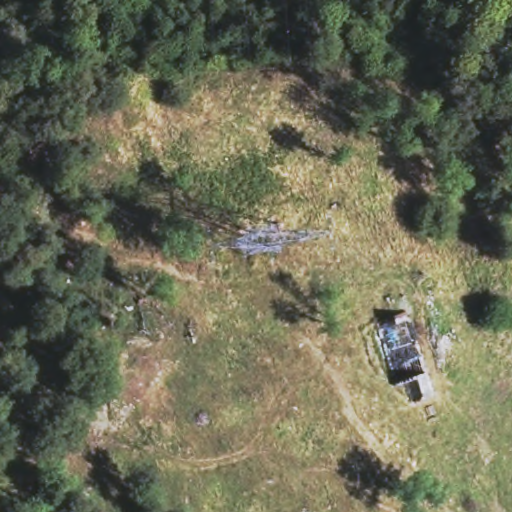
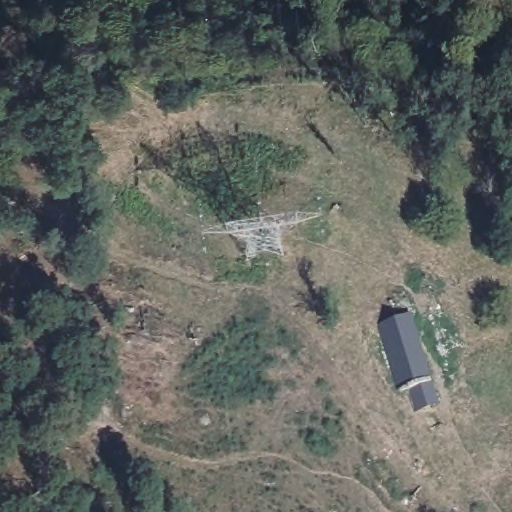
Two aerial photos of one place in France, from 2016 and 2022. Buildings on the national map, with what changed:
new [(416,396),(408,379),(400,382),(376,319),(411,308),(441,388),(416,396)]
demolished [(425,358),(429,379),(405,385),(392,326),(417,320),(425,358)]

